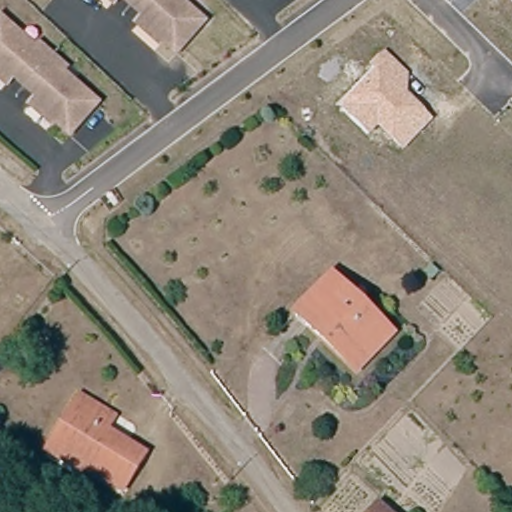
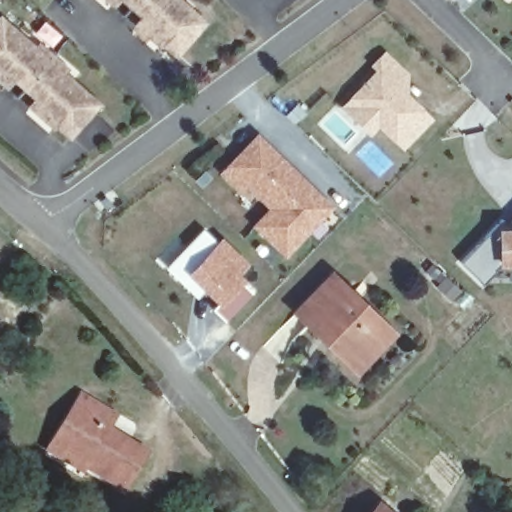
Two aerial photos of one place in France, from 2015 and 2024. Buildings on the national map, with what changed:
unchanged [(180,53),(144,20),(148,16),(129,0),(182,0),(207,21),(180,53)]
unchanged [(12,85),(8,90),(0,83),(0,28),(34,58),(38,54),(51,65),(24,96),(12,85)]
unchanged [(375,70),(370,66),(385,51),(409,73),(408,93),(434,119),(404,150),(379,124),(369,134),(341,107),(375,70)]
unchanged [(51,65),(64,76),(61,81),(96,112),(69,143),(33,111),(36,107),(24,96),(51,65)]
new [(273,149),(291,165),(316,189),(314,190),(318,194),(320,193),(333,205),(288,253),(259,224),(275,207),(249,182),(243,189),(226,172),(260,135),(273,149)]
new [(510,264),(499,264),(483,282),(461,261),(502,220),(506,224),(512,217),(512,274),(510,274),(510,264)]
new [(190,284),(172,267),(207,229),(225,247),(228,244),(248,263),(238,274),(256,291),(228,320),(216,309),(223,301),(211,290),(205,298),(190,284)]
unchanged [(385,333),(351,369),(325,344),(323,345),(299,321),(335,284),(385,333)]
unchanged [(49,451),(78,404),(112,424),(104,438),(142,461),(122,494),(49,451)]
unchanged [(386,512),(371,512),(378,504),(386,512)]

